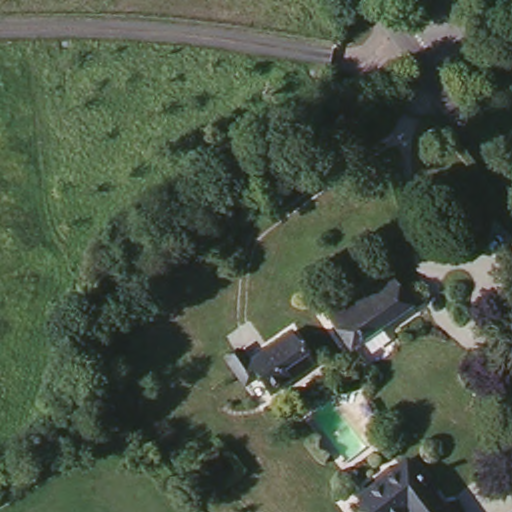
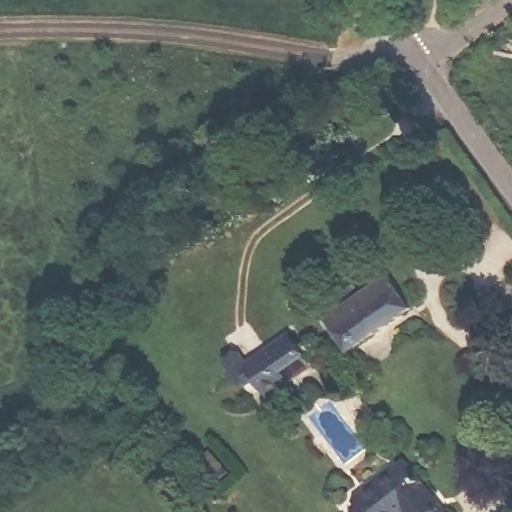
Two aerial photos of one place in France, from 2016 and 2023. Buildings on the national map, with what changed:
unchanged [(347,348),(325,310),(389,272),(412,310),(347,348)]
unchanged [(294,376),(272,388),(257,395),(232,349),(245,341),(252,354),(297,328),(311,353),(316,363),(294,376)]
unchanged [(187,464),(176,472),(161,451),(172,443),(187,464)]
unchanged [(357,501),(370,492),(411,463),(433,494),(445,512),(365,512),(357,501)]

